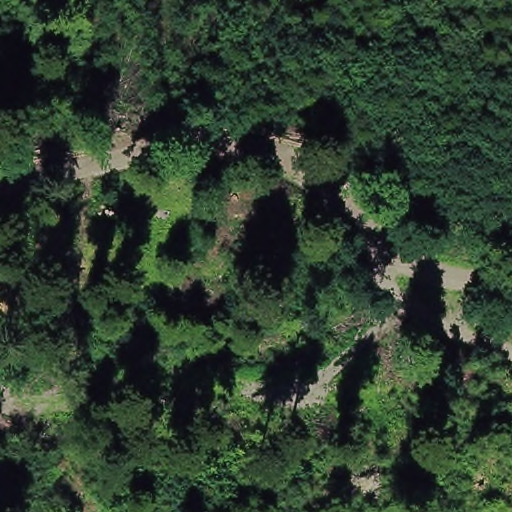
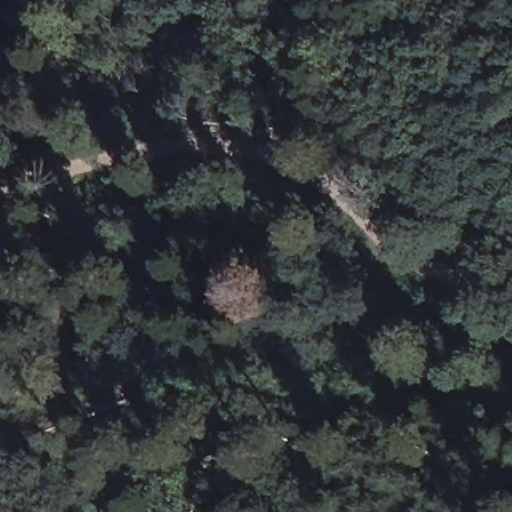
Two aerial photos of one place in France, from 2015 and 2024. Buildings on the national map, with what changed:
unchanged [(261,152),(252,152),(252,142),(252,138),(261,138),(261,144),(261,152)]

